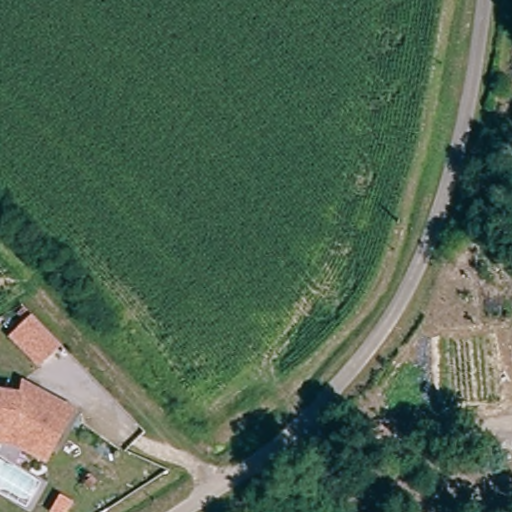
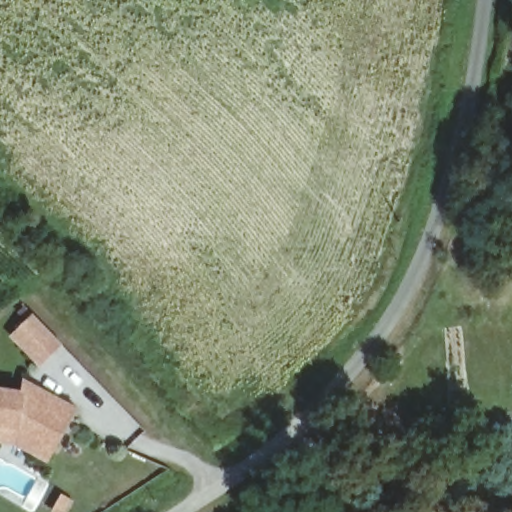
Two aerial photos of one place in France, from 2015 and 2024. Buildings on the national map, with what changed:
unchanged [(58,347),(36,367),(10,337),(31,317),(58,347)]
unchanged [(0,444),(0,393),(18,397),(19,386),(29,391),(69,413),(50,451),(43,463),(13,446),(0,444)]
unchanged [(48,512),(56,497),(66,503),(61,512),(48,512)]

